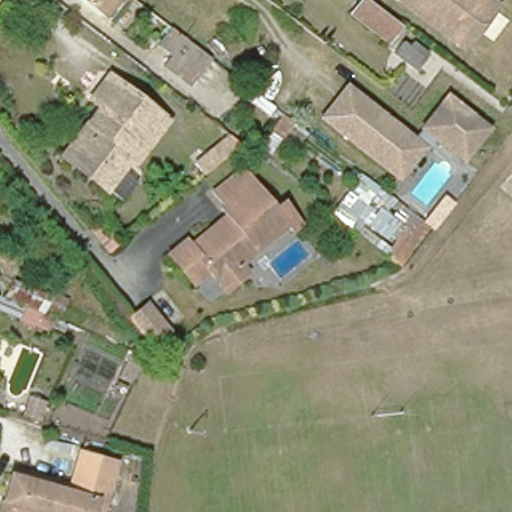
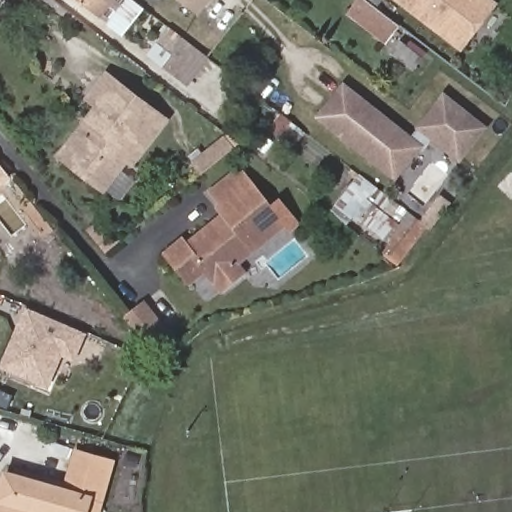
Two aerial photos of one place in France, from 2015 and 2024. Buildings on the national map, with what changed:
unchanged [(104,17),(83,0),(117,0),(104,17)]
demolished [(185,20),(160,0),(201,0),(185,20)]
new [(200,15),(180,0),(211,0),(200,15)]
unchanged [(461,48),(396,0),(487,0),(493,5),(461,48)]
unchanged [(385,47),(350,19),(361,3),(398,31),(385,47)]
unchanged [(194,86),(167,66),(175,55),(161,44),(175,27),(216,58),(194,86)]
unchanged [(400,43),(421,60),(412,71),(391,55),(400,43)]
unchanged [(86,120),(97,106),(86,98),(105,74),(165,119),(131,163),(125,159),(103,189),(74,166),(60,155),(86,120)]
unchanged [(324,118),(348,87),(415,140),(428,123),(448,97),(488,129),(468,154),(464,159),(437,139),(428,150),(424,147),(400,178),(324,118)]
unchanged [(223,140),(230,149),(200,172),(194,163),(223,140)]
new [(0,187),(0,165),(11,178),(0,187)]
unchanged [(222,292),(213,282),(205,272),(189,284),(165,255),(184,241),(188,245),(212,226),(225,216),(219,209),(223,206),(213,194),(242,172),(287,226),(238,266),(245,274),(222,292)]
unchanged [(396,206),(387,218),(370,204),(365,211),(372,217),(361,231),(355,226),(354,227),(337,213),(353,193),(364,180),(396,206)]
unchanged [(432,233),(405,273),(386,258),(396,246),(390,241),(409,216),(432,233)]
unchanged [(65,248),(46,268),(15,254),(45,225),(65,248)]
unchanged [(95,230),(100,237),(105,234),(117,248),(105,257),(89,236),(95,230)]
unchanged [(67,303),(60,322),(41,314),(25,306),(2,297),(9,278),(67,303)]
demolished [(0,314),(0,296),(2,297),(41,314),(35,330),(0,314)]
unchanged [(144,304),(165,332),(148,346),(126,318),(144,304)]
new [(63,357),(49,390),(0,368),(0,364),(25,306),(41,314),(60,322),(88,333),(75,362),(63,357)]
demolished [(25,400),(40,405),(36,419),(21,414),(25,400)]
unchanged [(27,477),(29,470),(67,480),(75,450),(111,462),(97,512),(8,512),(18,475),(27,477)]

